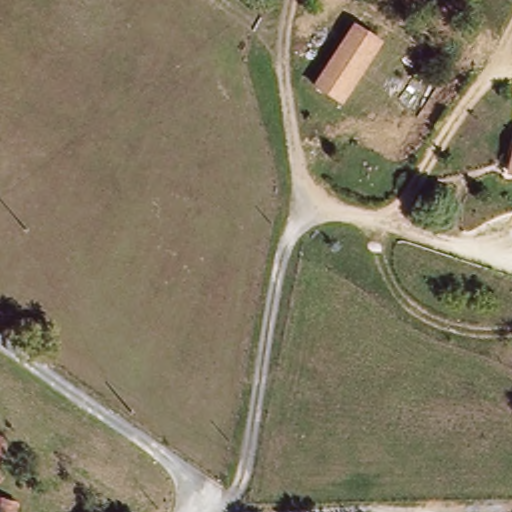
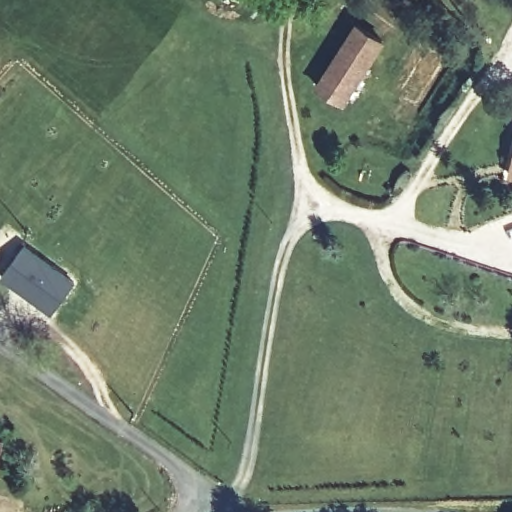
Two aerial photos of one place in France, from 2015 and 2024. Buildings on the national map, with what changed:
unchanged [(351,25),(377,40),(340,101),(314,86),(351,25)]
new [(53,313),(1,277),(25,244),(76,280),(53,313)]
unchanged [(0,464),(0,447),(5,448),(1,459),(0,464)]
unchanged [(17,512),(5,512),(7,509),(17,512)]

